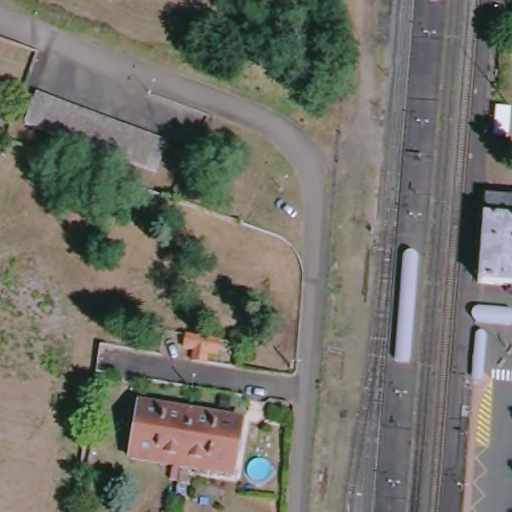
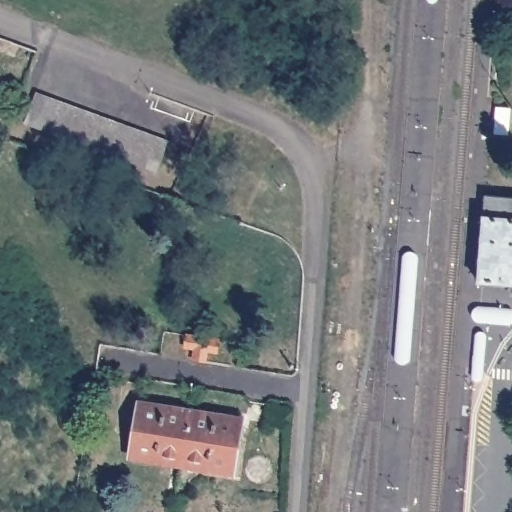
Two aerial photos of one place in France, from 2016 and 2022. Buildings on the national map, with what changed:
unchanged [(153,171),(19,124),(30,93),(165,142),(153,171)]
unchanged [(470,282),(475,214),(479,191),(512,197),(512,288),(470,282)]
unchanged [(388,358),(396,250),(415,251),(407,361),(388,358)]
unchanged [(190,359),(192,346),(184,345),(185,332),(217,337),(213,349),(205,348),(202,361),(190,359)]
unchanged [(180,464),(129,455),(137,401),(188,409),(180,464)]
unchanged [(238,418),(230,472),(180,464),(188,409),(238,418)]

